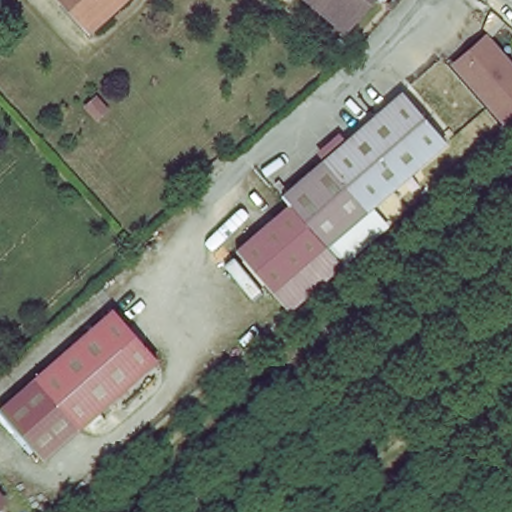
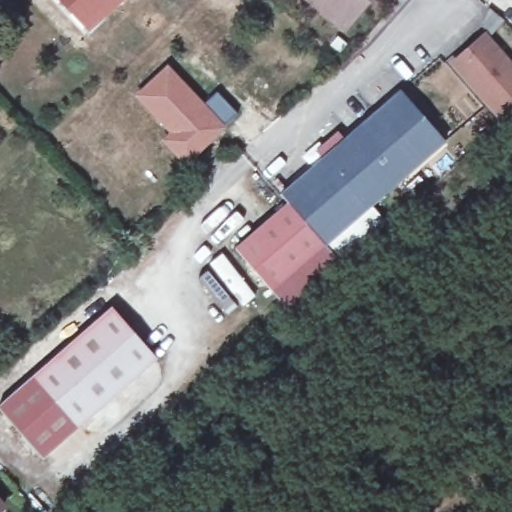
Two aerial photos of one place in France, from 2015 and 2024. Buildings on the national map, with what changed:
unchanged [(90,26),(66,0),(118,0),(90,26)]
unchanged [(342,27),(309,0),(365,0),(342,27)]
unchanged [(487,32),(512,64),(512,117),(502,125),(451,65),(487,32)]
new [(167,63),(204,101),(217,90),(239,114),(185,166),(160,139),(168,132),(133,95),(167,63)]
unchanged [(287,201),(282,196),(280,193),(399,90),(443,141),(323,243),(287,201)]
unchanged [(323,243),(270,289),(235,247),(287,201),(323,243)]
unchanged [(342,256),(286,308),(271,291),(329,241),(342,256)]
unchanged [(32,455),(0,413),(0,396),(108,306),(150,355),(32,455)]
unchanged [(0,506),(0,498),(4,503),(0,506)]

